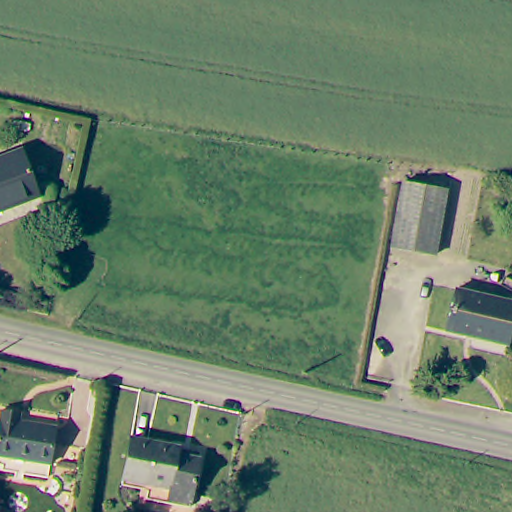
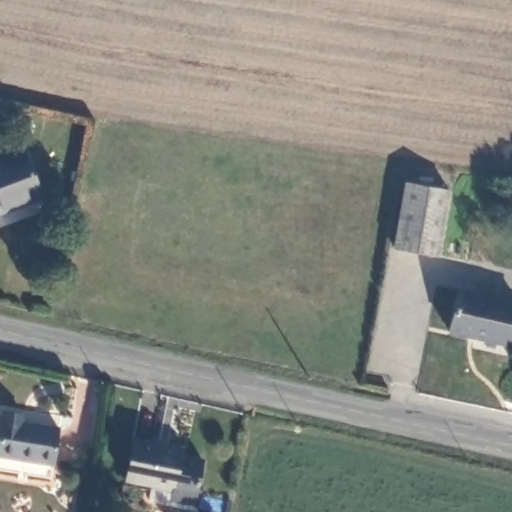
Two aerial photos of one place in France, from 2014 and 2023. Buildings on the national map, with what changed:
unchanged [(38,189),(17,197),(19,204),(0,211),(0,160),(23,151),(38,189)]
unchanged [(438,254),(393,247),(405,182),(449,190),(438,254)]
unchanged [(512,329),(509,344),(467,332),(466,336),(447,332),(458,288),(512,305),(512,329)]
unchanged [(23,419),(22,426),(59,433),(52,469),(0,461),(0,434),(4,415),(23,419)]
unchanged [(149,440),(180,446),(180,455),(205,461),(199,491),(194,490),(191,509),(142,499),(143,490),(124,485),(133,437),(149,440)]

